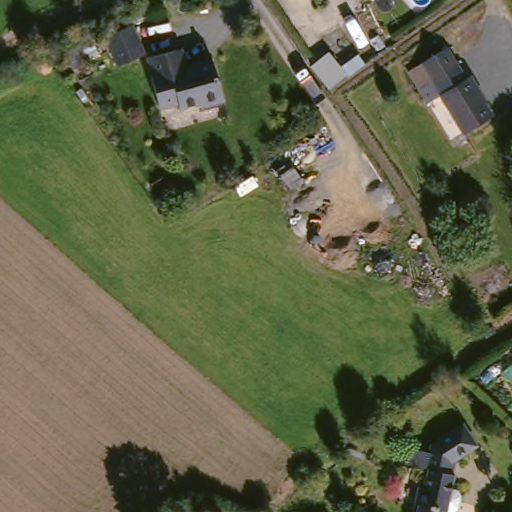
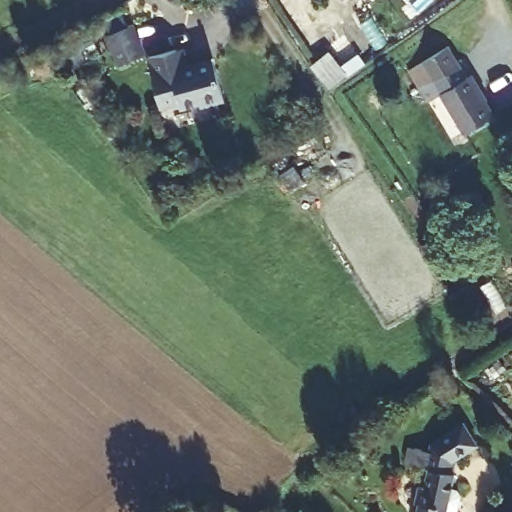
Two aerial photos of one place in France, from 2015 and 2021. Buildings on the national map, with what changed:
unchanged [(110,67),(101,33),(122,25),(135,57),(110,67)]
unchanged [(179,70),(210,61),(221,101),(198,106),(197,103),(178,109),(176,102),(157,108),(149,79),(151,78),(146,60),(174,52),(179,70)]
unchanged [(492,99),(495,98),(504,111),(474,129),(449,91),(438,99),(429,84),(469,60),(492,99)]
unchanged [(335,65),(344,79),(328,90),(326,88),(325,85),(319,76),(335,65)]
unchanged [(464,510),(454,508),(453,512),(426,512),(428,503),(424,502),(427,482),(432,482),(436,463),(420,461),(423,443),(439,446),(440,438),(470,420),(482,439),(463,451),(460,467),(461,467),(457,488),(467,489),(464,510)]

